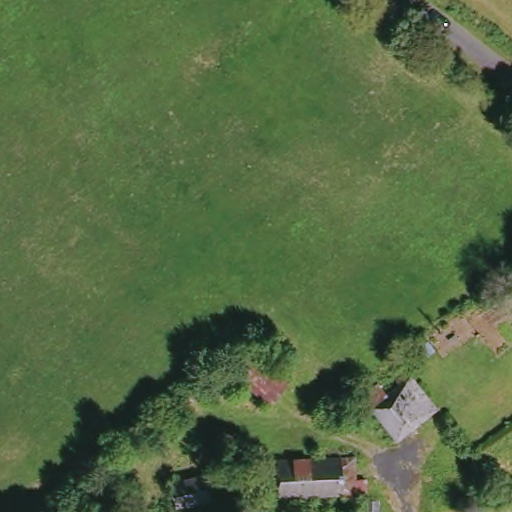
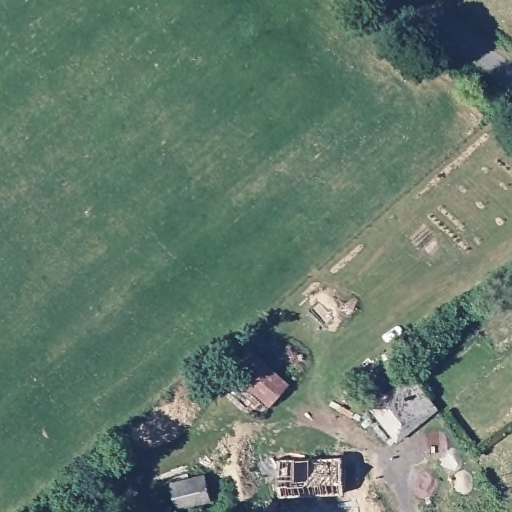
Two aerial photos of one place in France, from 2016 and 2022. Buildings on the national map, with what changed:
unchanged [(250,348),(288,382),(270,403),(232,369),(250,348)]
unchanged [(407,445),(373,401),(389,388),(397,398),(420,380),(447,413),(407,445)]
unchanged [(349,498),(285,501),(283,473),(270,473),(270,463),(348,461),(349,498)]
unchanged [(205,473),(212,498),(177,507),(171,482),(205,473)]
unchanged [(385,512),(372,512),(373,505),(386,505),(385,512)]

